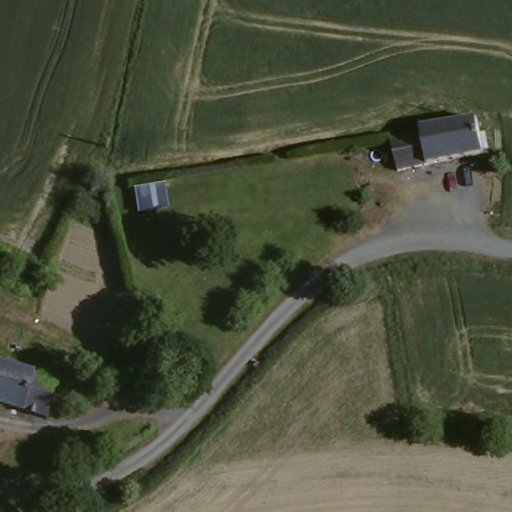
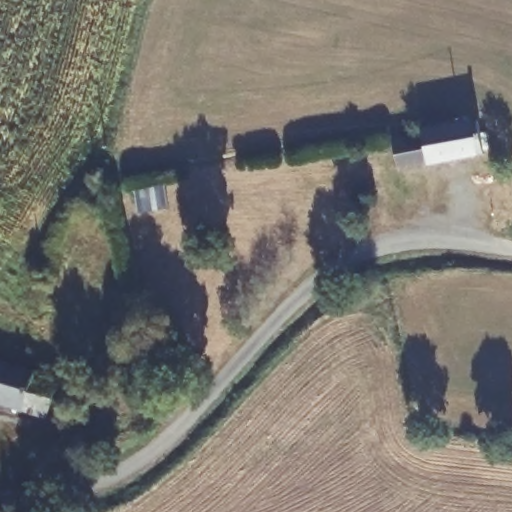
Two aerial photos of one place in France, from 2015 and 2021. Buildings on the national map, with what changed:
unchanged [(429,134),(428,129),(481,119),(487,154),(401,171),(395,139),(429,134)]
unchanged [(36,421),(12,414),(0,411),(0,370),(23,377),(47,384),(36,421)]

